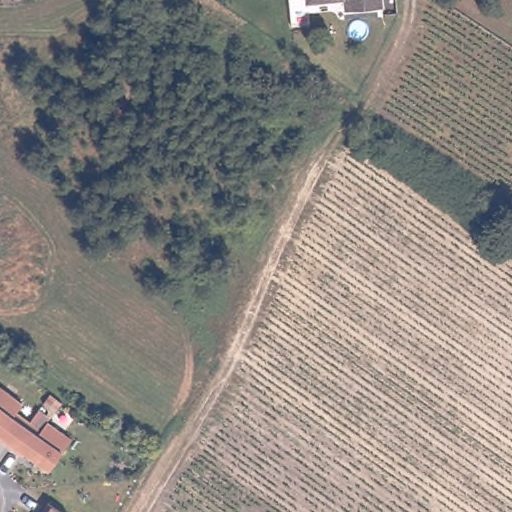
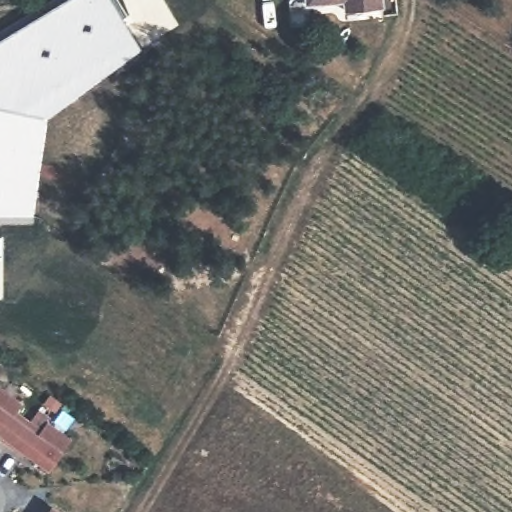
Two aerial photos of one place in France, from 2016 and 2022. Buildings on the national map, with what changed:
new [(65,0),(111,0),(140,48),(44,117),(19,111),(20,215),(0,215),(0,39),(65,0)]
unchanged [(383,0),(384,6),(343,10),(342,1),(305,5),(304,0),(383,0)]
unchanged [(23,403),(17,411),(41,429),(47,421),(72,440),(49,470),(25,452),(23,456),(0,439),(0,386),(23,403)]
unchanged [(48,503),(62,512),(42,512),(48,503)]

